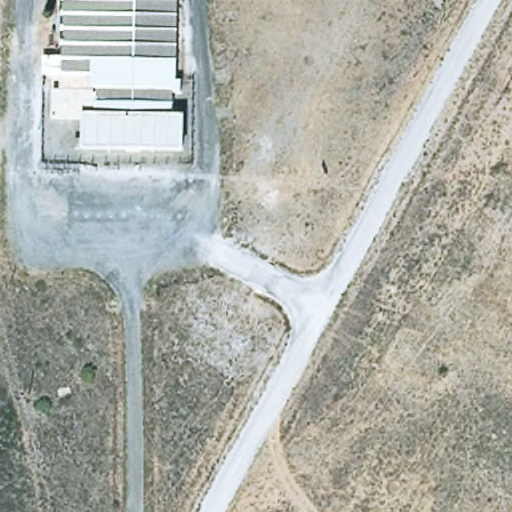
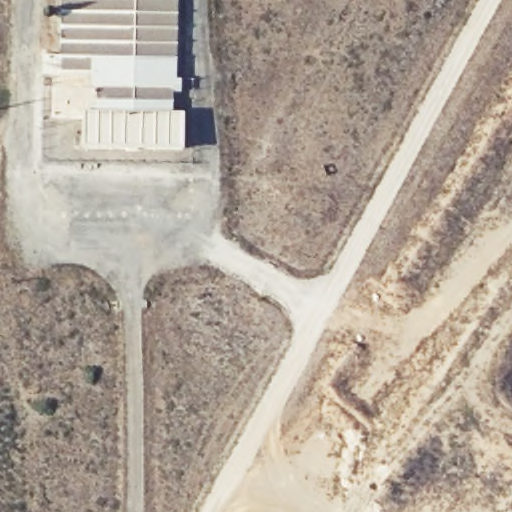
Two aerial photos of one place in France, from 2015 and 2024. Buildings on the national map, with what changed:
unchanged [(180,74),(179,87),(170,87),(170,109),(182,109),(182,146),(79,145),(80,114),(49,113),(50,83),(57,83),(57,70),(40,70),(40,50),(57,51),(58,0),(176,0),(175,74),(180,74)]

